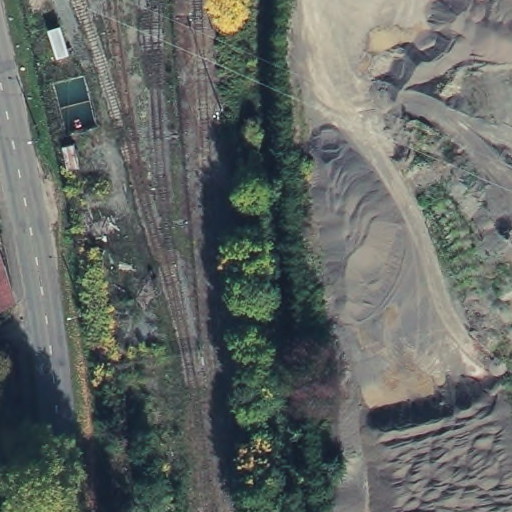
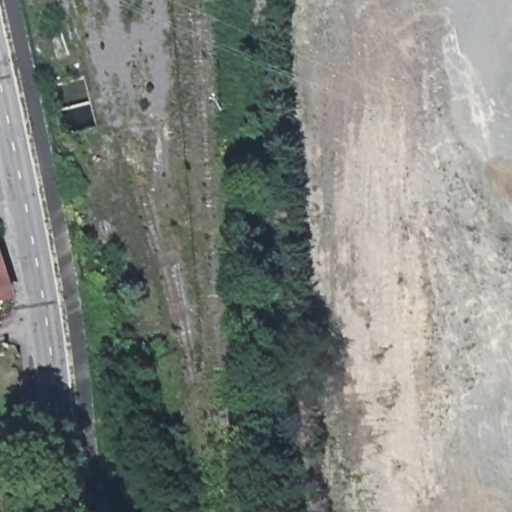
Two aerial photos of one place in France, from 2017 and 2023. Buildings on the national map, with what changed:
unchanged [(0,305),(0,262),(12,301),(10,301),(0,305)]

